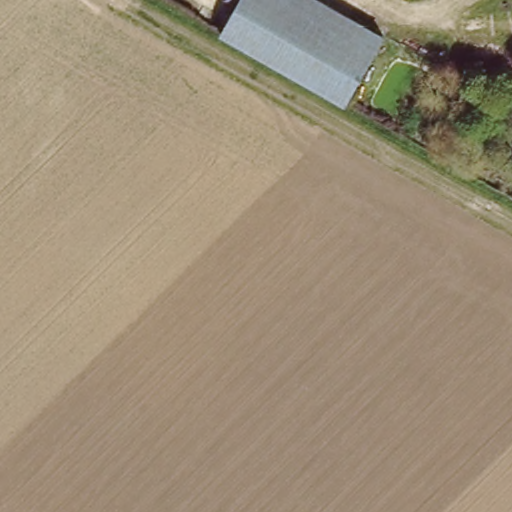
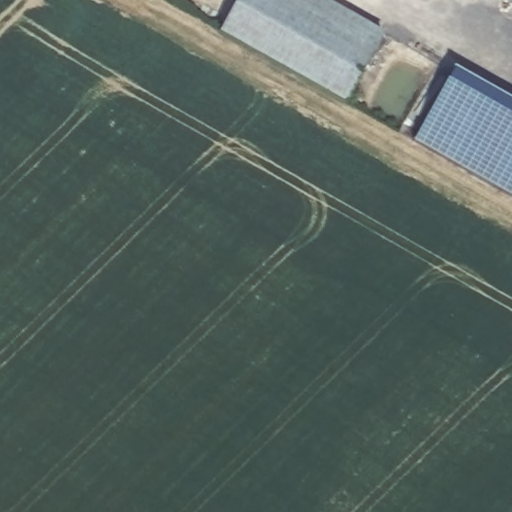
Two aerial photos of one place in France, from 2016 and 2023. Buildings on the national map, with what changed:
unchanged [(240,0),(328,0),(392,36),(354,106),(222,32),(240,0)]
new [(415,142),(456,69),(512,101),(512,196),(415,142)]

